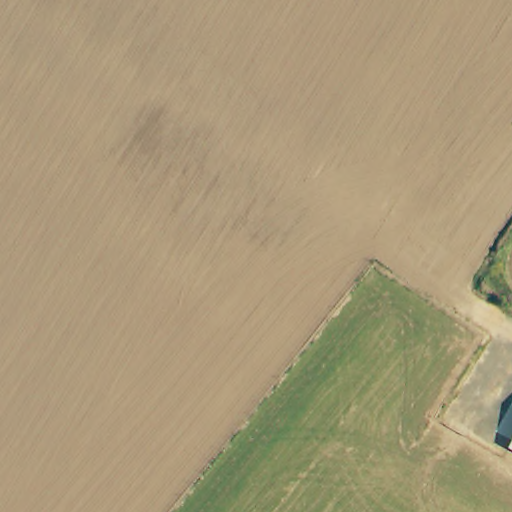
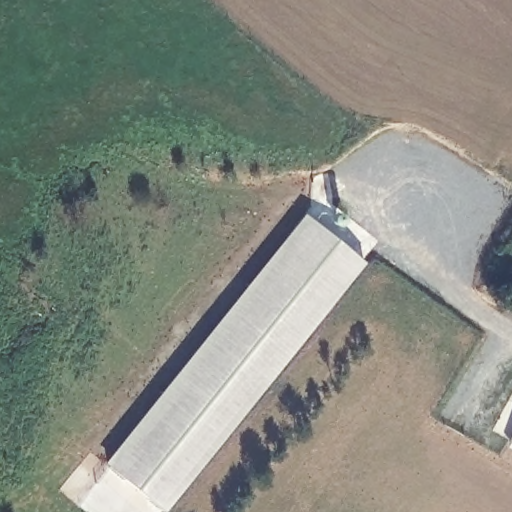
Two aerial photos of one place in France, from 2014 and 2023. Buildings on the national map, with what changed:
new [(165,511),(104,462),(305,214),(366,262),(165,511)]
unchanged [(512,449),(510,448),(512,445),(512,449)]

